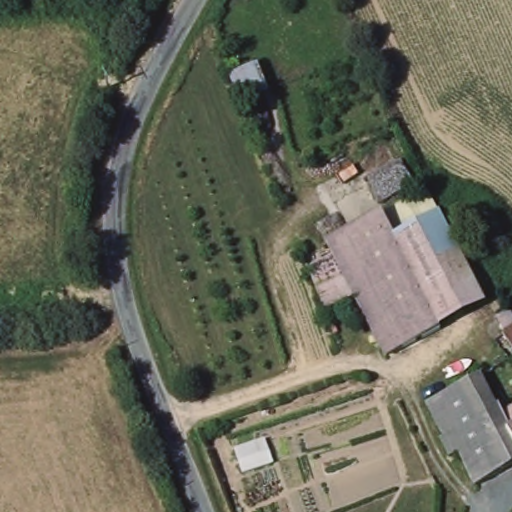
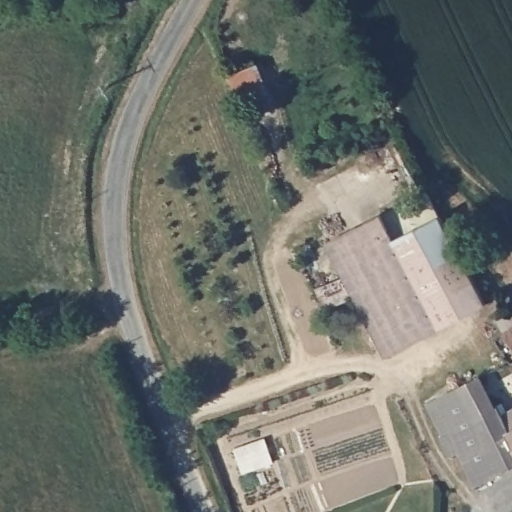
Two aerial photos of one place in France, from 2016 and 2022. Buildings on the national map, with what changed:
unchanged [(480,308),(438,329),(437,326),(388,208),(425,190),(440,220),(480,308)]
unchanged [(380,352),(332,239),(388,208),(437,326),(380,352)]
unchanged [(512,334),(512,359),(499,338),(511,332),(512,334)]
unchanged [(478,480),(465,455),(452,461),(435,433),(445,429),(430,402),(478,379),(493,406),(498,401),(506,415),(512,412),(512,462),(478,480)]

